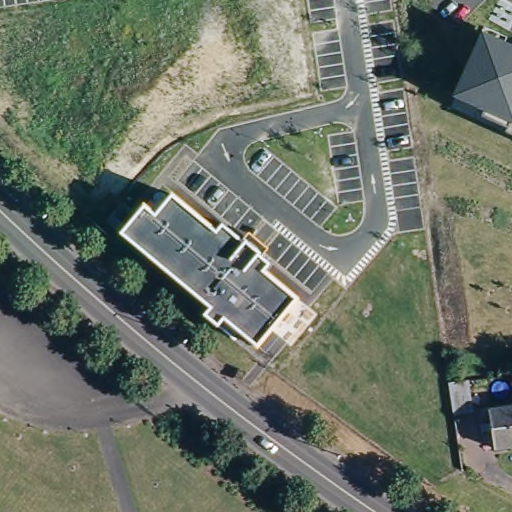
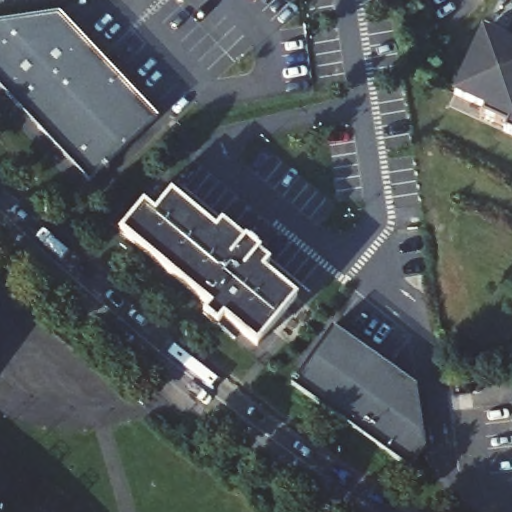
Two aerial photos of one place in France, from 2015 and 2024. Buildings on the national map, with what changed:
new [(157,115),(88,180),(0,86),(0,20),(57,11),(157,115)]
unchanged [(505,42),(512,46),(512,134),(505,131),(506,127),(482,114),(483,111),(453,96),(484,25),(507,36),(505,42)]
unchanged [(217,230),(223,223),(245,241),(246,240),(262,253),(261,255),(272,263),(265,271),(299,298),(258,349),(225,321),(220,325),(205,314),(209,307),(119,231),(143,203),(156,212),(172,192),(217,230)]
new [(415,383),(424,443),(407,464),(286,382),(328,325),(415,383)]
demolished [(446,383),(465,381),(466,380),(470,410),(451,412),(446,383)]
demolished [(512,446),(492,448),(486,408),(512,406),(512,446)]

